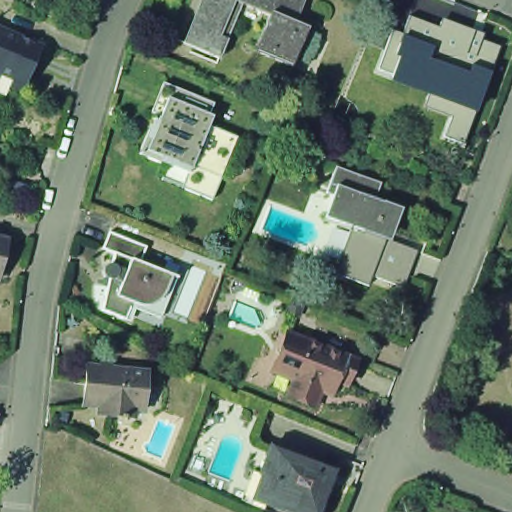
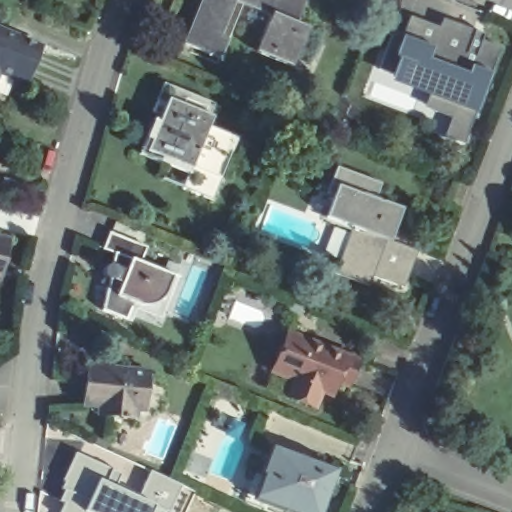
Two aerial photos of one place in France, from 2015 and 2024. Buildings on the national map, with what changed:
unchanged [(195,0),(238,0),(215,57),(177,42),(195,0)]
unchanged [(290,21),(266,11),(238,0),(299,0),(290,21)]
unchanged [(290,21),(303,27),(286,66),(249,50),(266,11),(290,21)]
unchanged [(377,70),(392,30),(402,34),(409,16),(438,27),(440,22),(472,35),(473,31),(482,34),(483,35),(481,41),(499,48),(462,145),(443,137),(451,116),(428,108),(434,91),(377,70)]
unchanged [(6,85),(9,79),(0,75),(0,32),(36,47),(17,90),(6,85)]
unchanged [(214,103),(205,124),(238,137),(212,200),(182,187),(189,169),(170,161),(168,165),(139,154),(149,128),(155,130),(161,115),(152,111),(164,82),(214,103)]
unchanged [(345,226),(319,216),(328,195),(320,192),(331,165),(375,181),(369,197),(396,207),(386,232),(381,231),(378,238),(411,250),(397,287),(366,275),(362,285),(328,272),(345,226)]
unchanged [(161,322),(131,310),(125,325),(101,315),(108,282),(106,281),(104,280),(103,277),(103,274),(105,271),(107,270),(110,268),(111,269),(114,257),(102,252),(109,235),(146,251),(140,267),(177,281),(181,283),(161,322)]
unchanged [(1,240),(0,244),(0,240),(1,240)]
unchanged [(291,378),(270,370),(286,330),(355,358),(344,385),(334,380),(328,394),(319,390),(313,406),(285,395),(291,378)]
unchanged [(87,363),(146,370),(142,410),(135,408),(134,416),(124,415),(124,417),(120,417),(120,415),(97,412),(98,405),(83,403),(87,363)]
new [(59,512),(62,505),(57,503),(63,490),(60,488),(73,451),(78,453),(82,442),(181,485),(169,512),(59,512)]
unchanged [(252,470),(260,473),(269,449),(321,468),(330,488),(320,512),(276,512),(264,507),(262,512),(260,512),(239,505),(252,470)]

